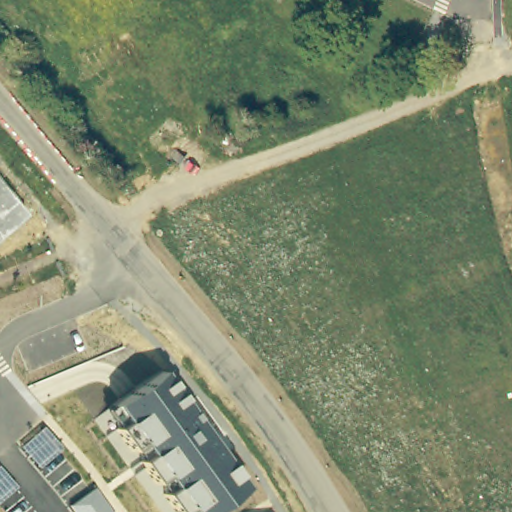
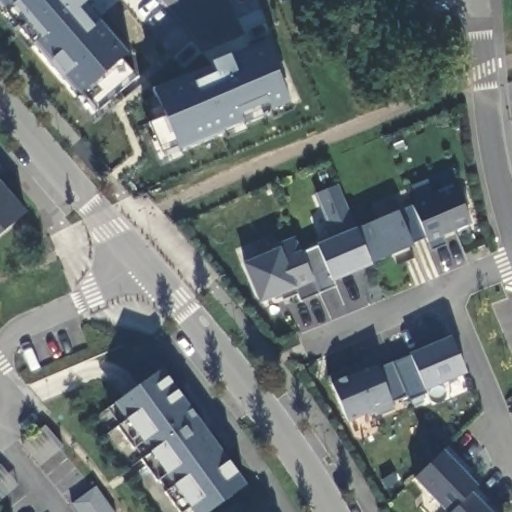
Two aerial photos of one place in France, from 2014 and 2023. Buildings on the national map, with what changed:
new [(123,59),(141,81),(116,102),(117,106),(98,125),(79,102),(82,99),(36,46),(32,49),(6,19),(10,14),(0,4),(0,0),(86,0),(131,51),(123,59)]
new [(294,112),(272,122),(270,117),(245,127),(249,132),(229,140),(226,135),(181,154),(184,160),(160,168),(145,140),(154,136),(147,125),(154,121),(144,100),(156,94),(154,90),(197,70),(196,66),(237,49),(241,53),(267,43),(294,112)]
unchanged [(0,237),(0,185),(26,215),(0,237)]
new [(425,240),(412,207),(410,205),(458,185),(467,204),(462,206),(470,223),(441,235),(445,244),(430,251),(425,240)]
new [(334,281),(336,286),(301,301),(297,295),(275,305),(274,299),(261,305),(241,265),(279,249),(295,238),(300,252),(317,245),(337,237),(315,195),(337,186),(356,229),(370,265),(334,281)]
new [(397,212),(412,207),(425,240),(413,245),(415,248),(370,265),(356,229),(397,212)]
new [(451,338),(467,375),(426,391),(410,355),(451,338)]
new [(327,377),(357,365),(359,372),(375,365),(377,370),(391,363),(407,396),(392,403),(396,409),(377,417),(375,412),(347,422),(330,383),(327,377)]
unchanged [(246,487),(212,512),(178,512),(102,410),(161,371),(246,487)]
unchanged [(21,445),(43,426),(63,449),(40,468),(21,445)]
new [(437,450),(475,488),(450,512),(442,512),(410,480),(437,450)]
unchanged [(0,465),(17,486),(0,501),(0,465)]
unchanged [(71,506),(95,488),(112,512),(75,512),(71,506)]
new [(475,488),(487,500),(482,505),(489,512),(450,512),(475,488)]

